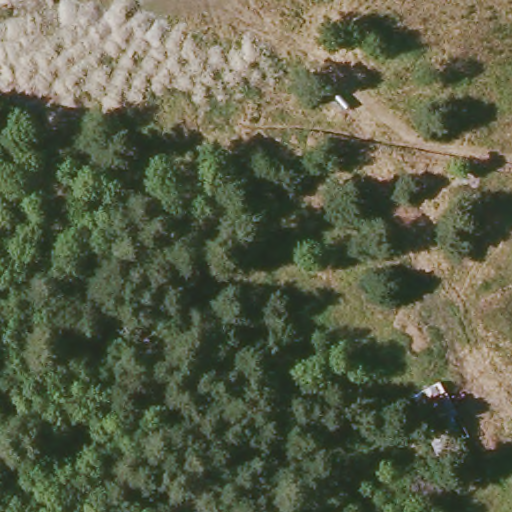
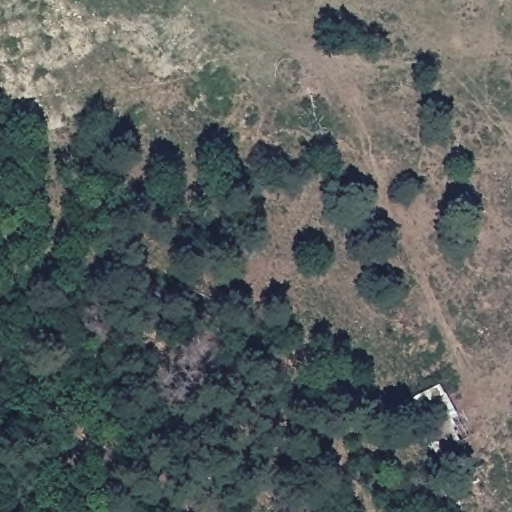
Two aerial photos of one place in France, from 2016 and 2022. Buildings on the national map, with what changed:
unchanged [(417,408),(413,397),(440,384),(444,393),(447,392),(471,442),(440,458),(417,408)]

